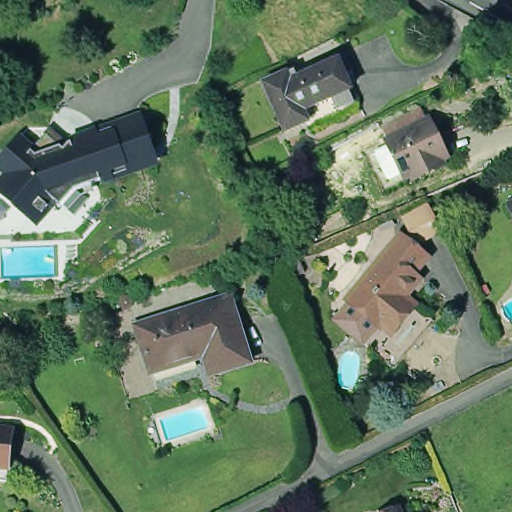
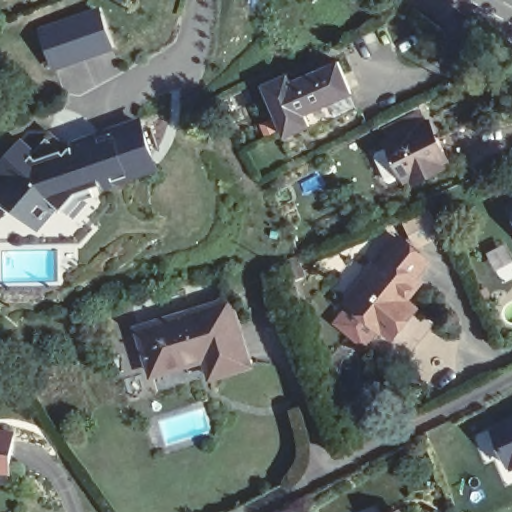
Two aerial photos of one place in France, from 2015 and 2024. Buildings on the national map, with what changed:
new [(55,70),(39,28),(99,6),(115,47),(55,70)]
unchanged [(309,117),(285,128),(265,86),(290,76),(292,81),(342,59),(351,80),(361,99),(334,111),(311,121),(309,117)]
unchanged [(3,177),(0,174),(0,164),(23,138),(35,151),(147,119),(159,171),(104,189),(100,180),(74,186),(37,229),(0,195),(0,181),(3,177)]
unchanged [(393,180),(380,157),(381,154),(393,147),(391,143),(434,120),(455,159),(411,180),(408,175),(396,181),(393,180)]
unchanged [(435,260),(415,285),(438,303),(396,352),(341,305),(402,233),(435,260)]
unchanged [(197,319),(242,306),(258,365),(219,375),(212,355),(158,370),(150,347),(145,326),(160,322),(195,312),(197,319)]
new [(489,425),(512,415),(512,470),(510,470),(489,425)]
unchanged [(0,466),(0,428),(9,428),(9,466),(0,466)]
unchanged [(400,509),(401,512),(392,512),(400,509)]

